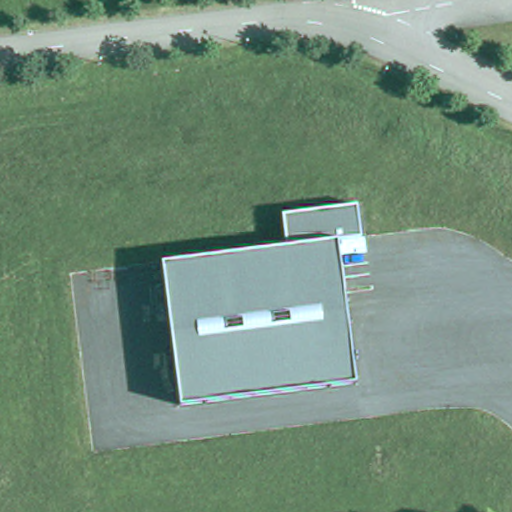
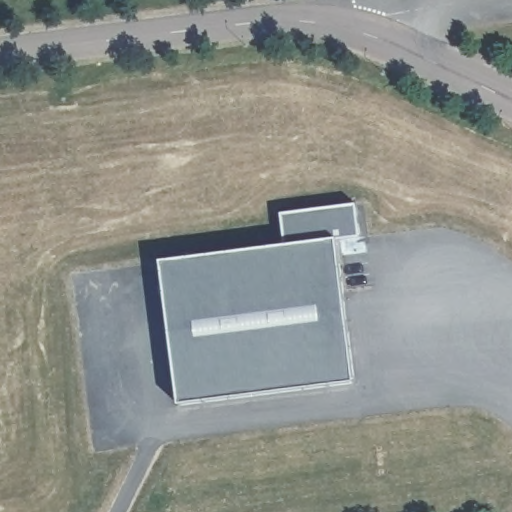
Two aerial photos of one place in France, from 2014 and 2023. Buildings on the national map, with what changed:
unchanged [(285,245),(281,219),(354,210),(359,238),(335,240),(356,386),(178,408),(161,263),(285,245)]

